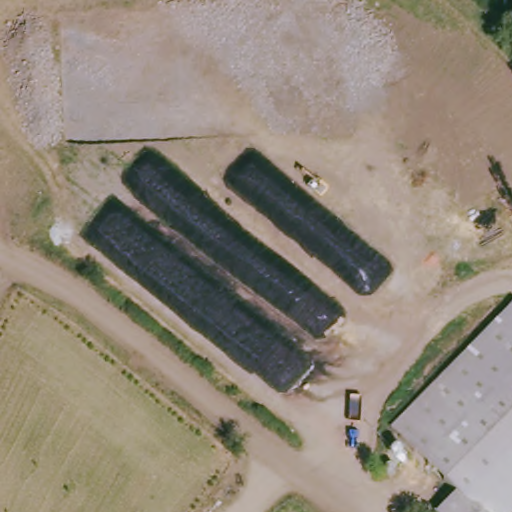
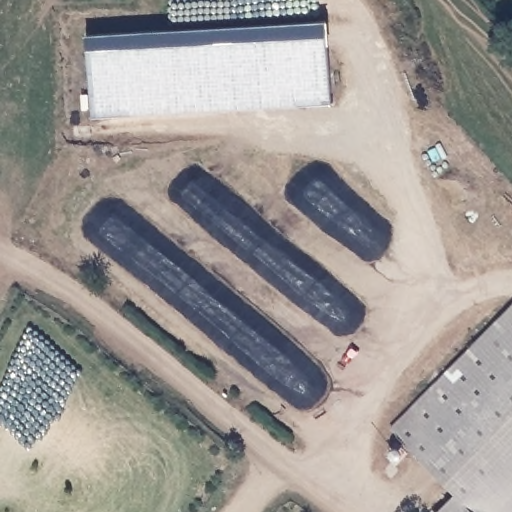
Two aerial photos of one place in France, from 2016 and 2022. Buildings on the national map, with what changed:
new [(88,36),(328,20),(332,101),(93,117),(88,36)]
unchanged [(457,512),(465,503),(396,440),(512,314),(512,492),(494,512),(457,512)]
unchanged [(494,512),(512,492),(512,512),(494,512)]

